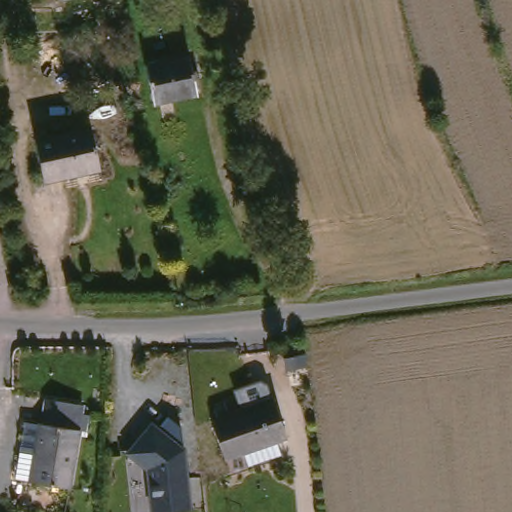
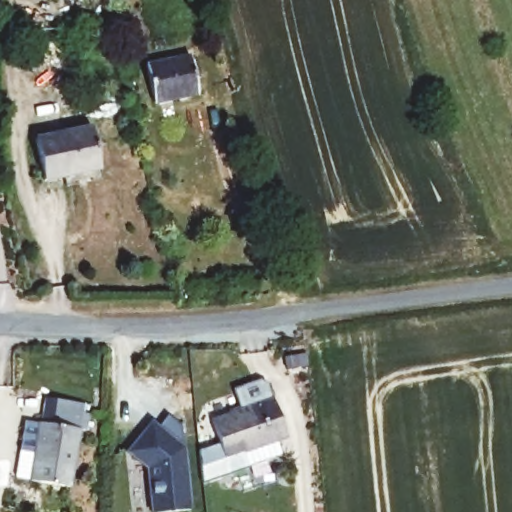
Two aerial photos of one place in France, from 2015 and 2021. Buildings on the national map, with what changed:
unchanged [(156,107),(145,68),(188,56),(200,95),(156,107)]
unchanged [(103,173),(67,183),(63,170),(44,176),(36,138),(90,124),(103,173)]
unchanged [(221,461),(216,418),(249,414),(247,395),(272,392),(278,396),(279,409),(281,409),(286,453),(221,461)]
unchanged [(26,452),(42,456),(56,397),(91,406),(72,492),(35,484),(21,482),(26,452)]
unchanged [(131,449),(130,442),(144,423),(149,415),(156,420),(166,407),(182,416),(185,438),(191,499),(154,504),(149,458),(131,449)]

